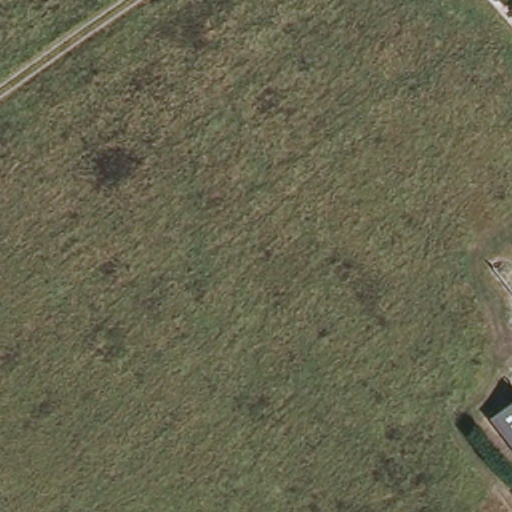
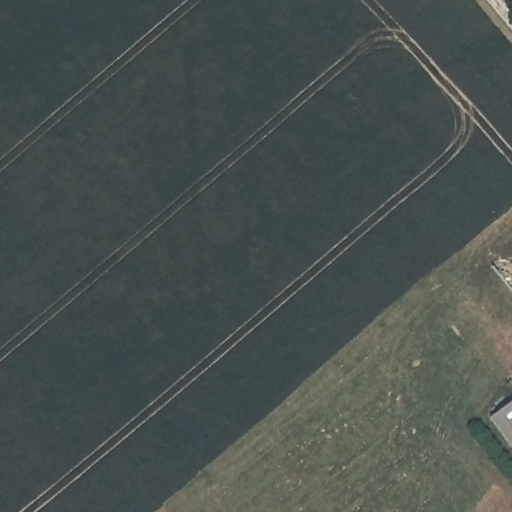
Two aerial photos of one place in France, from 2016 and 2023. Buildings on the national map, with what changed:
unchanged [(489,410),(512,394),(512,441),(489,410)]

